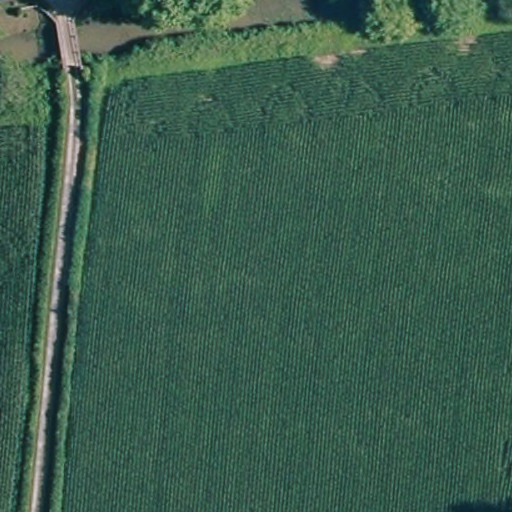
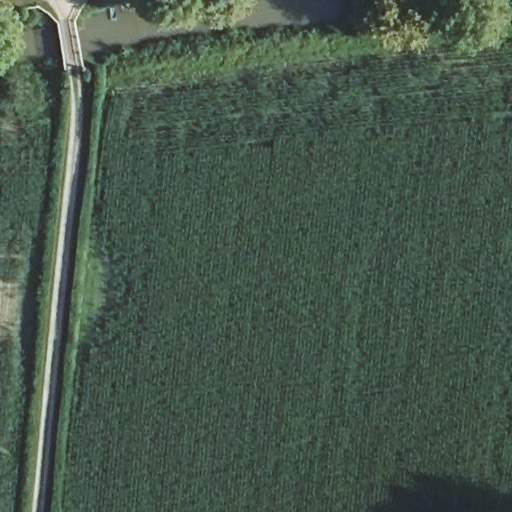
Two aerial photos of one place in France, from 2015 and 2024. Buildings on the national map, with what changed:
[]

